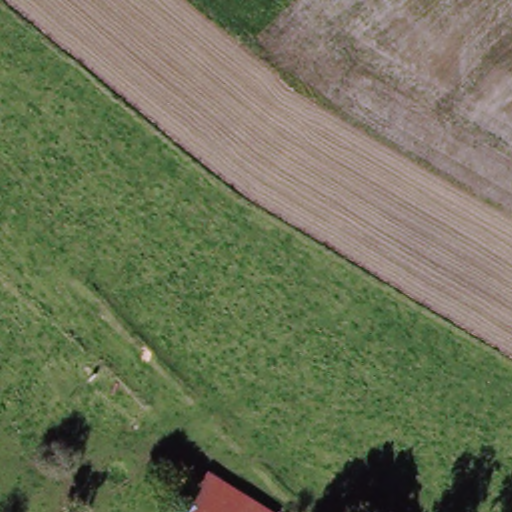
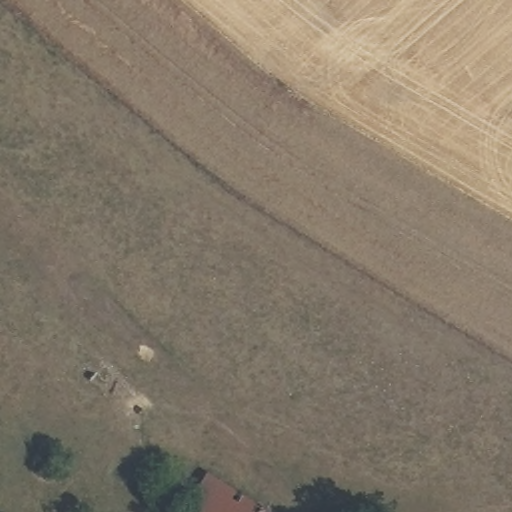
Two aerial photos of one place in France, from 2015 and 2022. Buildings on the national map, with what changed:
unchanged [(206,474),(267,512),(183,512),(206,474)]

